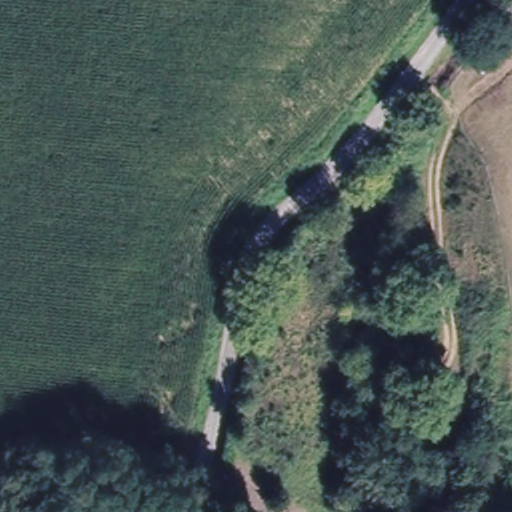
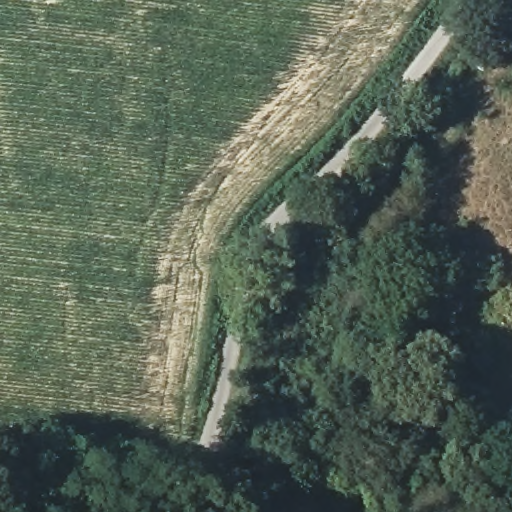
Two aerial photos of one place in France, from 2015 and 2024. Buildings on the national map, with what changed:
unchanged [(479,45),(511,0),(512,0),(512,49),(502,64),(479,45)]

